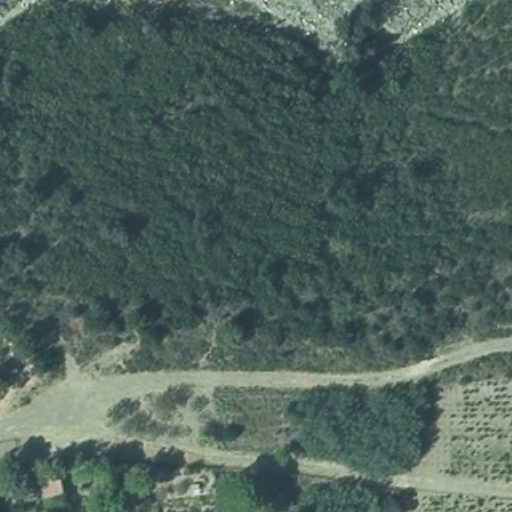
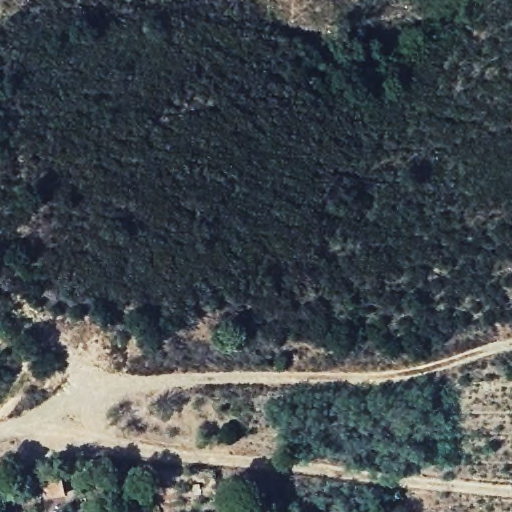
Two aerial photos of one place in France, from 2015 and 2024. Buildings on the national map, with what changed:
unchanged [(68,481),(73,512),(51,512),(45,483),(68,481)]

